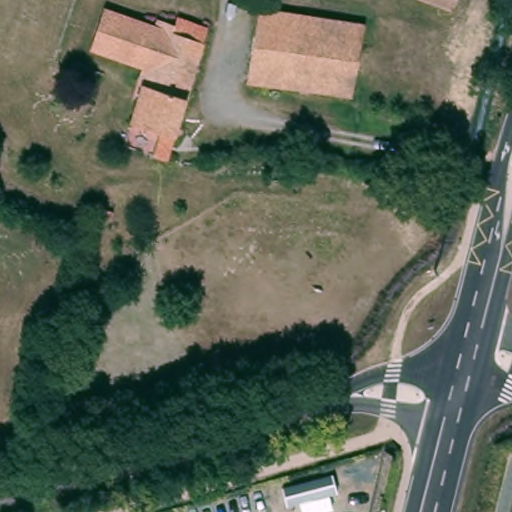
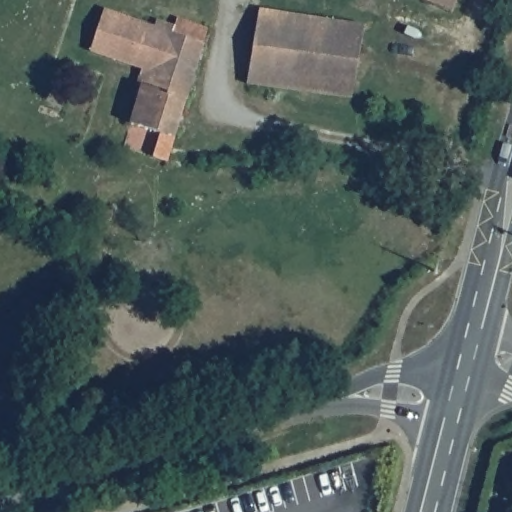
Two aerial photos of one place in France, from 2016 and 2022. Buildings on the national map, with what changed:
unchanged [(451,16),(419,0),(458,0),(451,16)]
unchanged [(366,28),(348,103),(248,78),(265,2),(366,28)]
unchanged [(161,23),(147,53),(164,61),(160,70),(142,62),(140,66),(92,49),(107,5),(161,23)]
unchanged [(133,83),(140,66),(142,62),(160,70),(164,61),(147,53),(161,23),(163,18),(183,27),(186,15),(216,30),(163,161),(148,153),(154,133),(137,125),(126,121),(140,87),(133,83)]
unchanged [(286,507),(281,487),(332,474),(337,493),(328,496),(331,509),(322,512),(302,512),(300,503),(286,507)]

